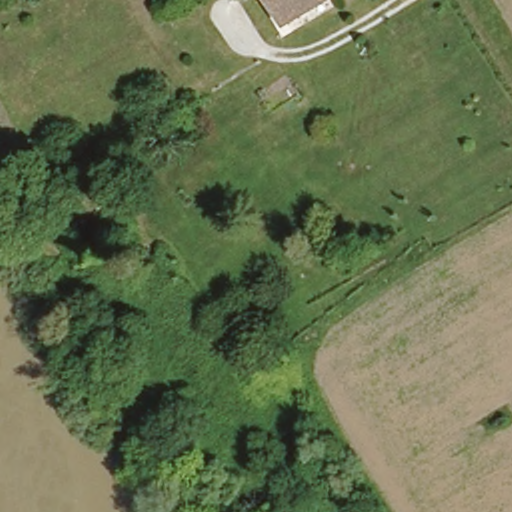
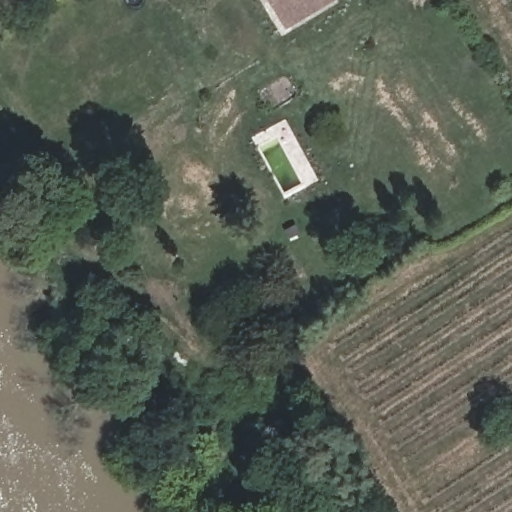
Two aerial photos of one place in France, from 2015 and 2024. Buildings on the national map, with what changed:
unchanged [(284,14),(275,0),(307,0),(284,14)]

